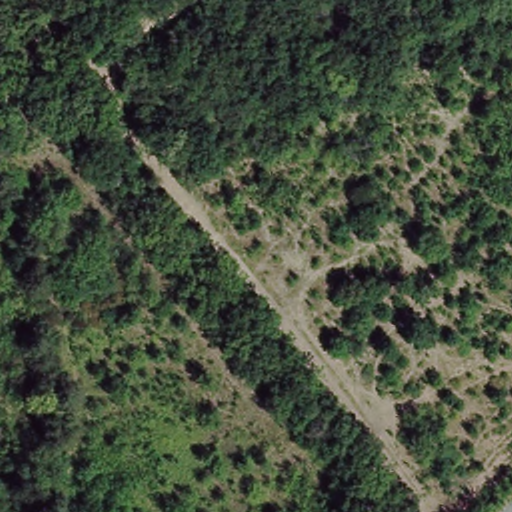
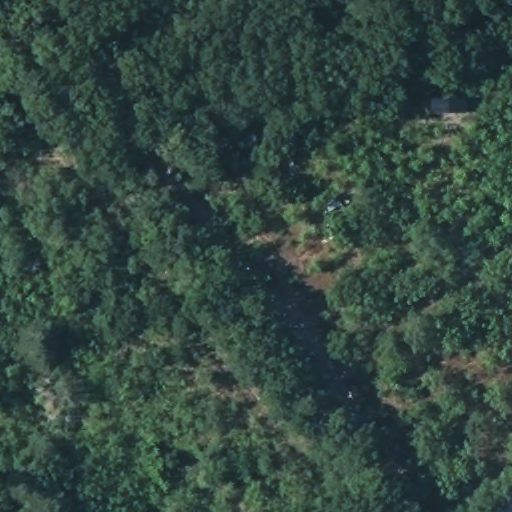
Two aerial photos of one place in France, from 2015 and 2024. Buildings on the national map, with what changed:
[]

